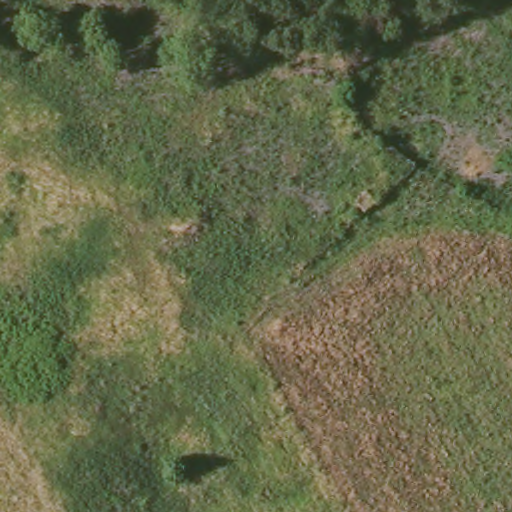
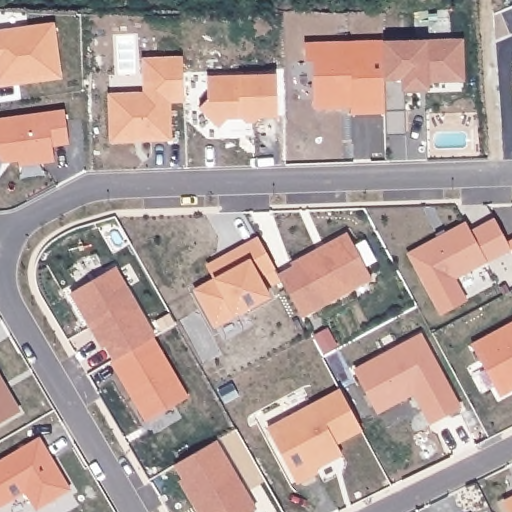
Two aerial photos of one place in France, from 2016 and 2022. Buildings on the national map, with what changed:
new [(0,30),(55,22),(62,80),(0,87),(0,30)]
new [(386,132),(385,109),(383,40),(446,37),(461,37),(462,77),(447,77),(427,77),(427,85),(405,86),(405,107),(406,132),(386,132)]
new [(383,38),(385,109),(352,111),(351,104),(315,105),(313,58),(306,58),(305,41),(383,38)]
new [(110,138),(109,92),(144,91),(143,57),(182,55),(183,97),(168,98),(170,136),(150,137),(133,137),(110,138)]
new [(207,97),(206,76),(276,73),(277,113),(260,114),(255,118),(245,119),(240,114),(228,115),(218,125),(199,106),(207,97)]
new [(16,157),(2,159),(0,158),(0,116),(62,108),(66,141),(50,143),(51,152),(40,153),(40,160),(17,162),(16,157)]
new [(455,275),(466,297),(442,310),(410,251),(467,221),(472,231),(497,217),(511,244),(455,275)]
new [(302,317),(281,276),(295,268),(293,265),(317,252),(328,246),(349,235),(373,279),(302,317)]
new [(229,270),(221,256),(259,236),(274,264),(257,273),(269,294),(215,323),(195,287),(216,277),(229,270)]
new [(510,240),(512,239),(512,245),(510,240)]
new [(70,292),(113,267),(153,336),(114,358),(106,345),(102,347),(88,323),(82,312),(70,292)]
new [(473,342),(512,321),(512,388),(501,394),(473,342)]
new [(356,368),(378,356),(421,333),(460,405),(432,421),(415,390),(379,410),(362,378),(356,368)]
new [(187,396),(150,418),(131,387),(127,390),(110,361),(152,337),(187,396)]
new [(20,411),(0,423),(0,377),(6,388),(20,411)]
new [(330,459),(316,466),(319,470),(297,482),(275,441),(268,428),(282,421),(341,388),(362,428),(337,442),(340,446),(343,452),(330,459)]
new [(0,506),(0,461),(40,437),(49,451),(53,458),(71,487),(38,508),(27,490),(0,506)]
new [(184,477),(175,463),(215,440),(255,508),(250,512),(200,512),(193,502),(180,480),(184,477)]
new [(512,500),(512,512),(511,512),(506,503),(512,500)]

